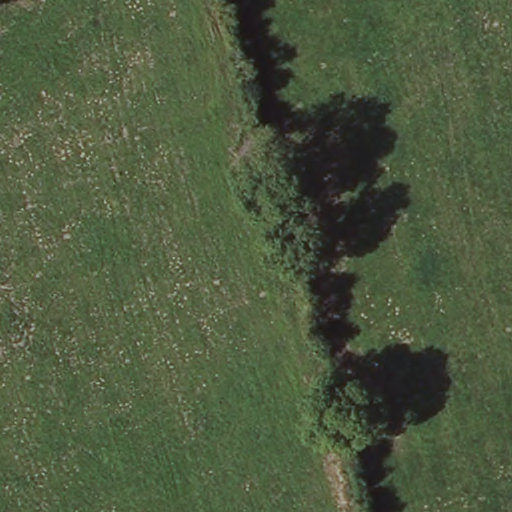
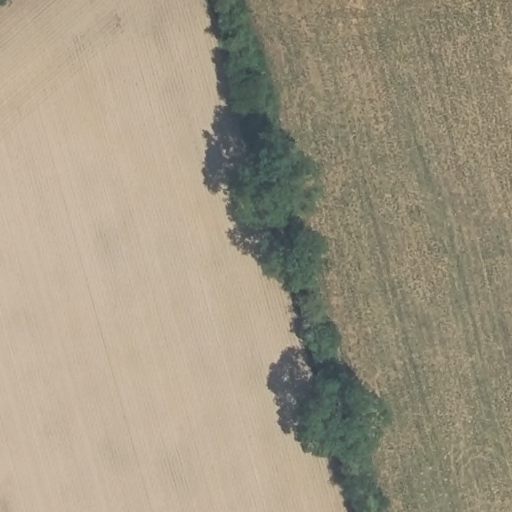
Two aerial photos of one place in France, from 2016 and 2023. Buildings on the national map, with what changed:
[]

